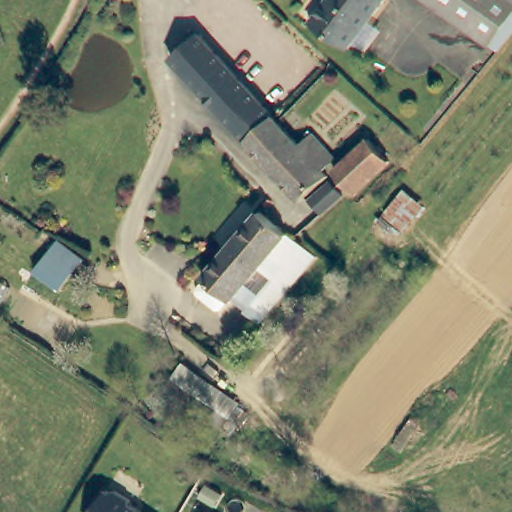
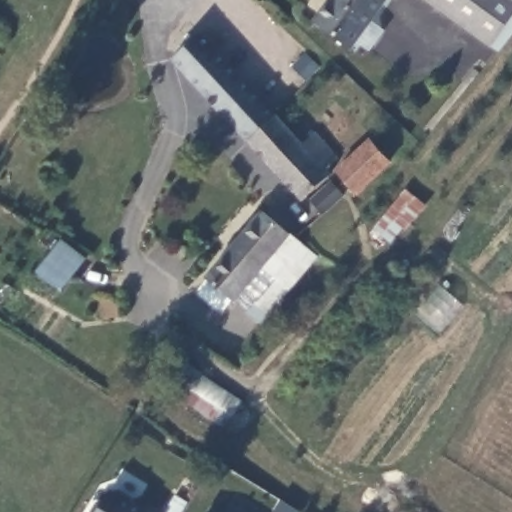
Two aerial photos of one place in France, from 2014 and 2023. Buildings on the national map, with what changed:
unchanged [(314,22),(332,0),(386,0),(389,2),(349,51),(314,22)]
unchanged [(492,44),(426,0),(512,0),(512,14),(492,44)]
unchanged [(501,50),(492,44),(512,14),(512,37),(501,50)]
unchanged [(337,159),(323,172),(328,178),(298,201),(171,60),(200,34),(292,136),(295,133),(305,145),(316,136),(337,159)]
unchanged [(390,165),(354,194),(336,171),(371,143),(390,165)]
unchanged [(243,312),(271,279),(259,270),(223,316),(213,316),(197,305),(195,294),(266,206),(308,241),(318,249),(259,325),(243,312)]
unchanged [(38,268),(62,238),(86,255),(64,288),(38,268)]
unchanged [(101,503),(107,492),(110,493),(116,492),(130,501),(132,507),(140,512),(91,512),(95,504),(101,503)]

